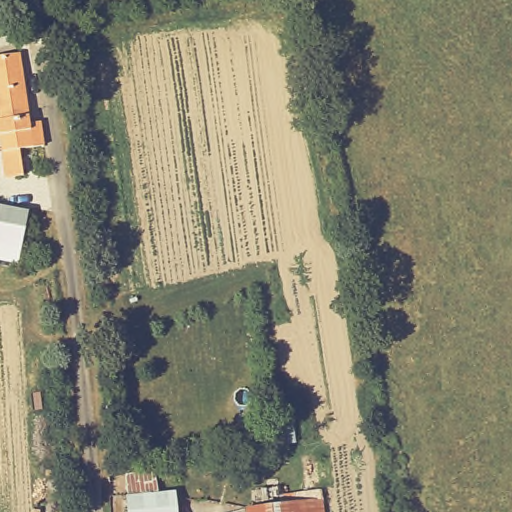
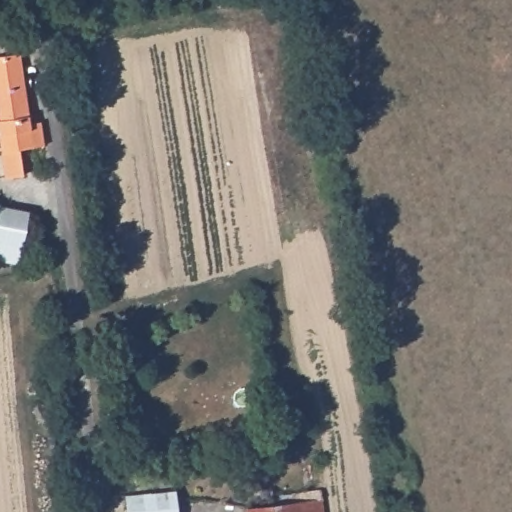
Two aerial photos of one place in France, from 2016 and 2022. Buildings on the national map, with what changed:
unchanged [(17,172),(1,174),(0,167),(0,54),(15,52),(25,122),(39,121),(41,142),(14,147),(17,172)]
unchanged [(0,207),(33,215),(21,266),(0,261),(0,207)]
unchanged [(325,495),(327,512),(248,512),(244,475),(296,470),(299,497),(325,495)]
unchanged [(173,474),(176,512),(128,512),(126,476),(173,474)]

